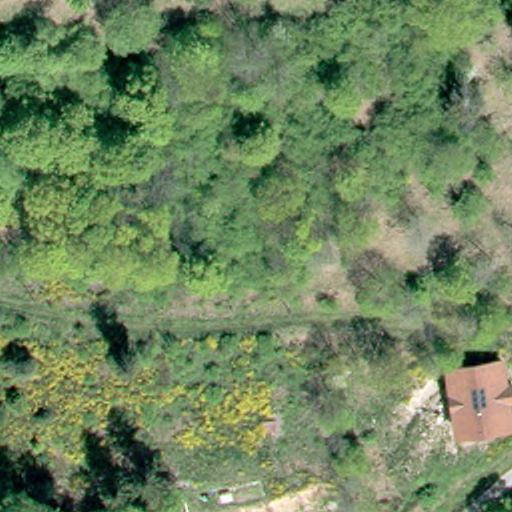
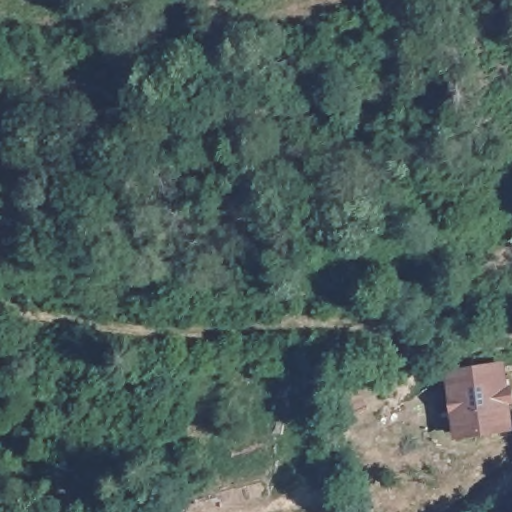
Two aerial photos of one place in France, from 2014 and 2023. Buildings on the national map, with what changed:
unchanged [(512,396),(512,432),(453,441),(445,372),(506,364),(512,396)]

